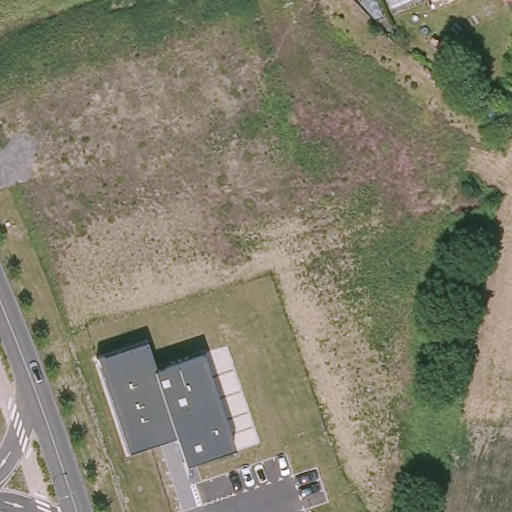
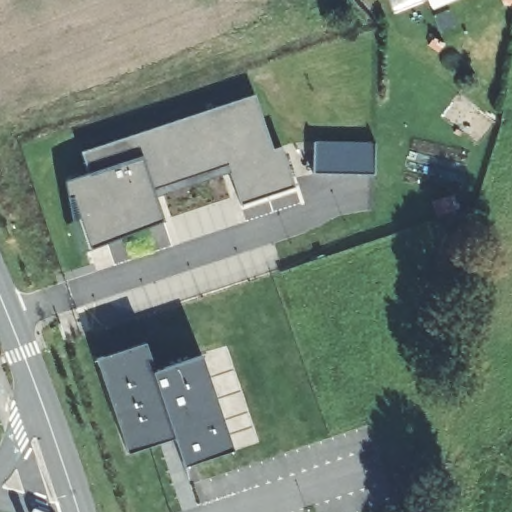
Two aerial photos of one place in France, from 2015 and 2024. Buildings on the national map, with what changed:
demolished [(393,0),(410,0),(395,6),(393,0)]
new [(393,0),(410,0),(395,6),(393,0)]
new [(445,0),(425,8),(422,0),(445,0)]
new [(254,92),(272,147),(311,137),(373,139),(373,171),(311,168),(291,175),(295,185),(237,205),(227,169),(152,194),(160,219),(77,250),(62,177),(87,170),(81,149),(254,92)]
unchanged [(97,360),(146,344),(155,372),(202,357),(232,450),(183,466),(175,439),(127,453),(97,360)]

